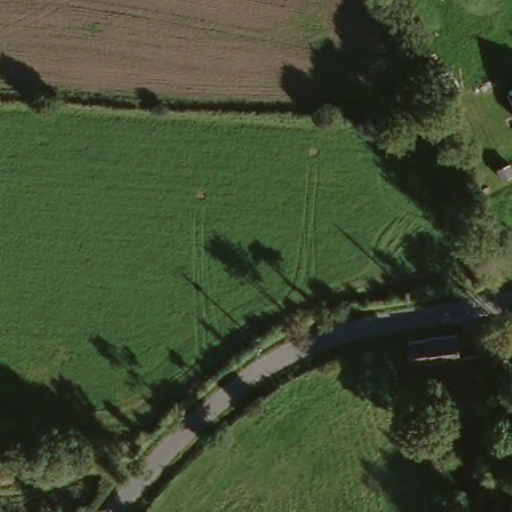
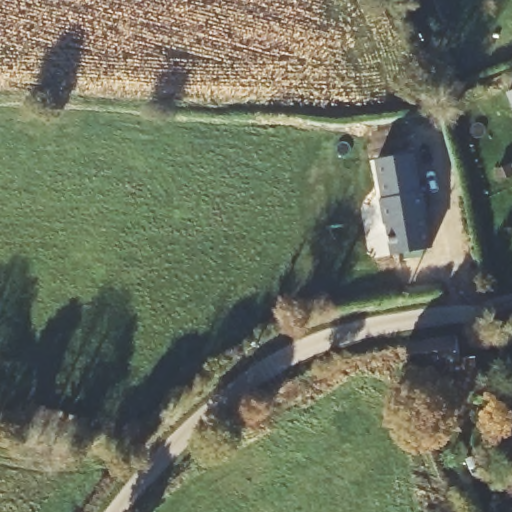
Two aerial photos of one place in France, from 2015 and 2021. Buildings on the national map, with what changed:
new [(414,150),(422,190),(424,190),(429,220),(427,220),(432,247),(393,254),(389,229),(386,230),(381,196),(383,196),(376,157),(414,150)]
unchanged [(458,330),(462,355),(411,363),(408,340),(428,335),(458,330)]

